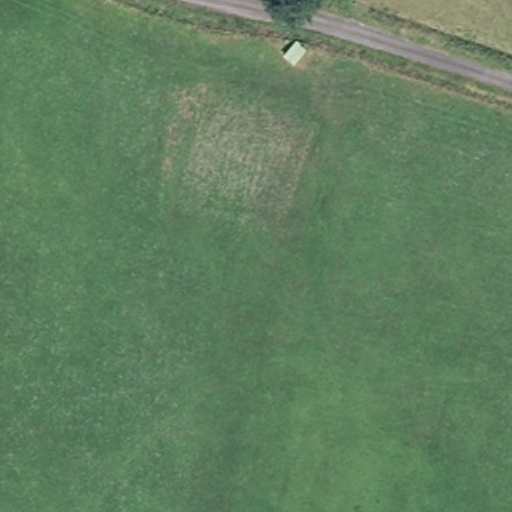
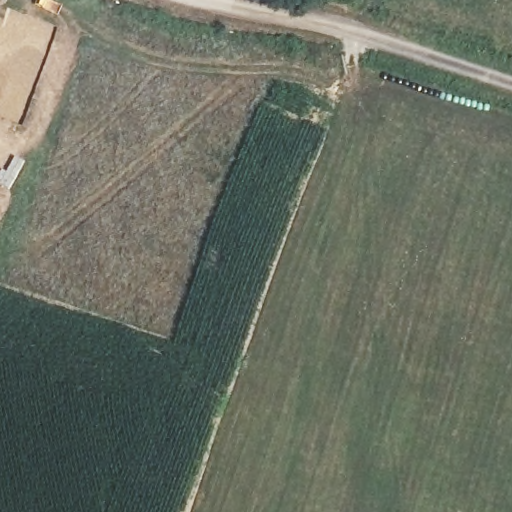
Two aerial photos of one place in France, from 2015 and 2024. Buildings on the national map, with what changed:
[]

